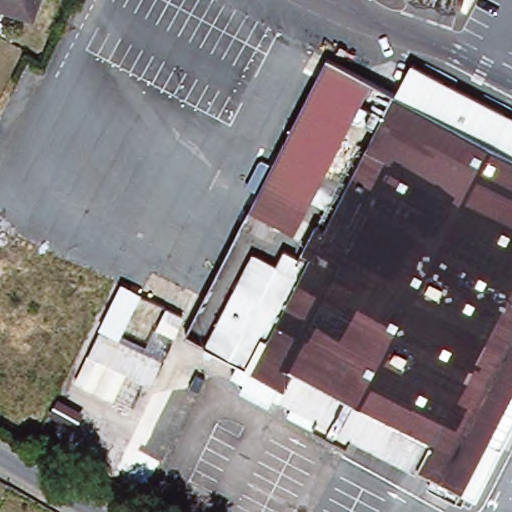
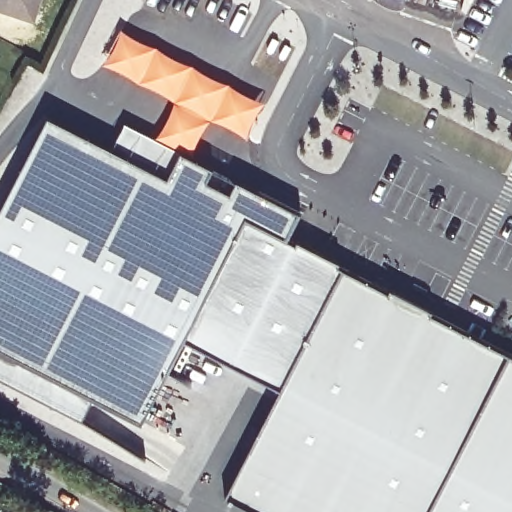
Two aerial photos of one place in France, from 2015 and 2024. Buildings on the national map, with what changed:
unchanged [(37,15),(0,3),(0,0),(42,0),(37,15)]
demolished [(430,477),(428,480),(256,392),(272,362),(251,351),(276,301),(281,303),(295,276),(304,280),(329,232),(305,220),(294,242),(250,220),(330,61),(339,66),(363,79),(408,102),(512,156),(512,408),(490,451),(498,455),(475,500),(467,495),(430,477)]
demolished [(423,73),(512,119),(512,156),(408,102),(423,73)]
new [(279,389),(185,339),(142,420),(91,397),(81,420),(0,378),(0,215),(50,118),(112,150),(125,123),(182,154),(297,215),(285,237),(342,266),(279,389)]
demolished [(255,257),(295,276),(281,303),(276,301),(251,351),(272,362),(256,392),(236,381),(245,365),(212,349),(255,257)]
new [(342,266),(512,354),(512,512),(256,512),(225,496),(342,266)]
demolished [(167,361),(153,387),(147,384),(135,410),(73,385),(100,332),(167,361)]
demolished [(203,381),(195,395),(188,391),(195,377),(203,381)]
demolished [(165,465),(144,502),(95,475),(116,438),(165,465)]

